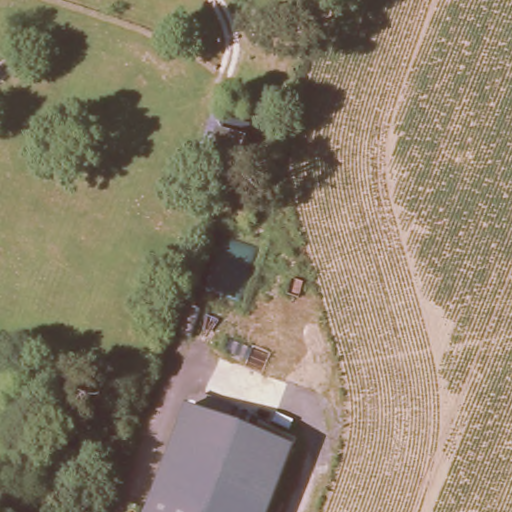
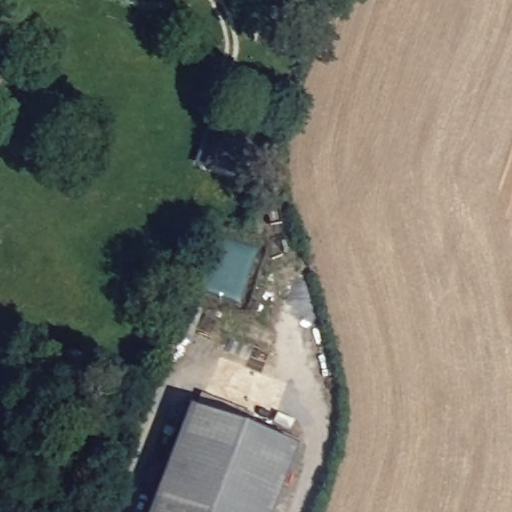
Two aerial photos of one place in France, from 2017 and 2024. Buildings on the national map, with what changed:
unchanged [(274,32),(266,72),(240,67),(248,27),(274,32)]
unchanged [(294,448),(271,512),(143,512),(181,406),(294,448)]

